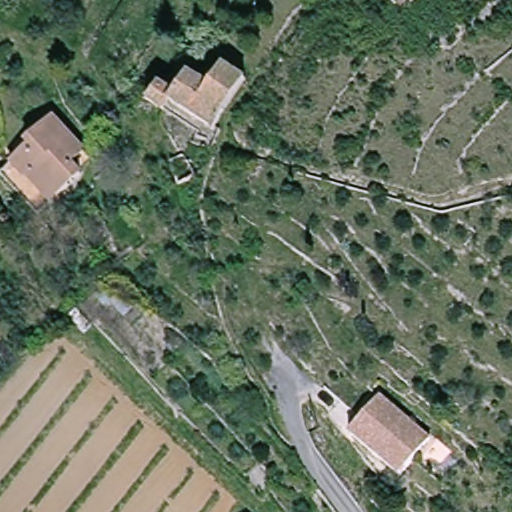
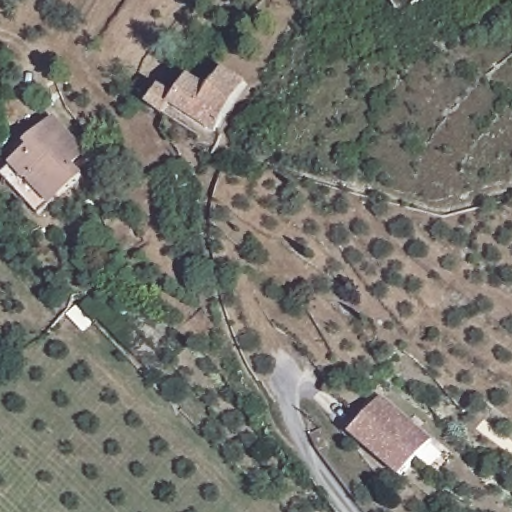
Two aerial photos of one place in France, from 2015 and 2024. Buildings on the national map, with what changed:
unchanged [(196,127),(161,112),(172,88),(187,95),(194,74),(212,83),(220,71),(246,90),(213,131),(217,134),(211,152),(189,142),(196,127)]
unchanged [(80,160),(87,173),(35,202),(7,157),(45,134),(42,128),(71,111),(94,152),(80,160)]
unchanged [(174,201),(166,180),(180,176),(189,195),(174,201)]
unchanged [(380,392),(436,436),(405,472),(350,429),(380,392)]

